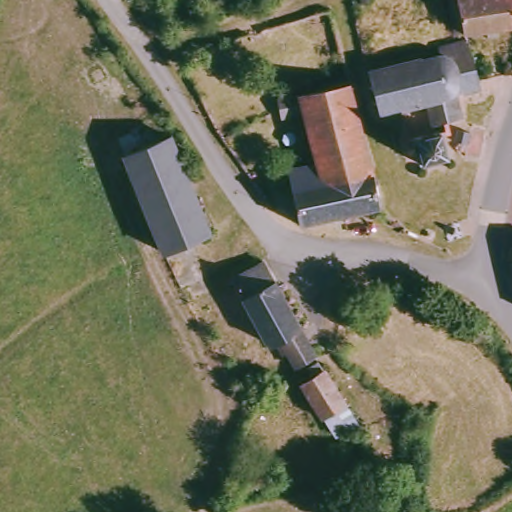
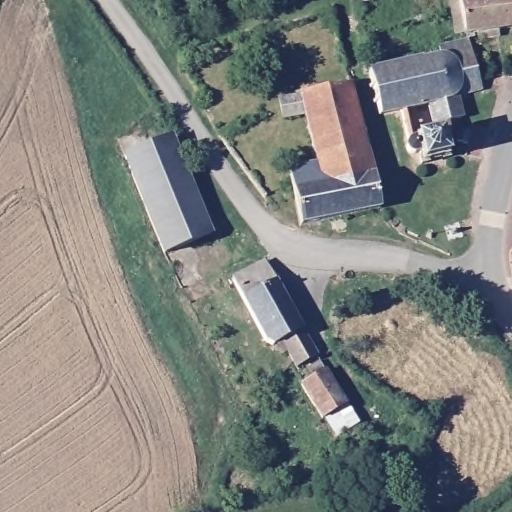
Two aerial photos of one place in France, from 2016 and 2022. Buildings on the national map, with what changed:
unchanged [(466,0),(512,0),(512,32),(475,38),(466,0)]
unchanged [(470,93),(466,83),(458,85),(468,118),(453,124),(458,133),(448,137),(455,154),(427,164),(422,150),(416,153),(409,139),(418,132),(408,107),(389,113),(375,71),(427,55),(431,62),(442,58),(446,67),(457,62),(455,57),(474,49),(487,88),(470,93)]
unchanged [(360,76),(377,132),(388,206),(349,215),(341,184),(333,185),(326,160),(310,109),(293,114),(288,97),(300,93),(360,76)]
unchanged [(207,202),(220,232),(174,254),(128,152),(175,132),(207,202)]
unchanged [(333,185),(341,184),(349,215),(310,223),(302,196),(292,169),(326,160),(333,185)]
unchanged [(270,260),(315,337),(328,362),(305,374),(291,352),(284,341),(277,345),(239,278),(245,275),(270,260)]
unchanged [(410,287),(421,306),(403,315),(390,295),(410,287)]
unchanged [(352,403),(331,413),(312,380),(334,369),(352,403)]

